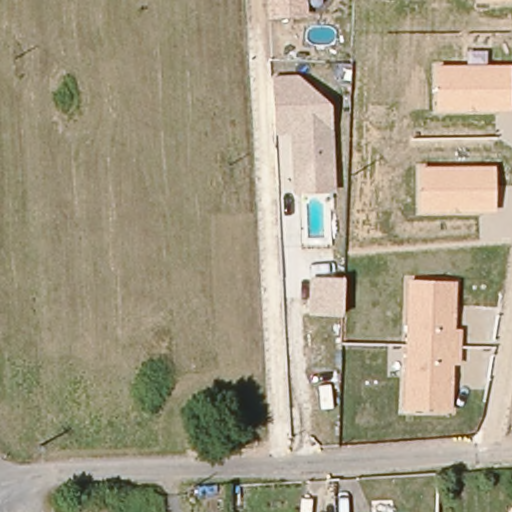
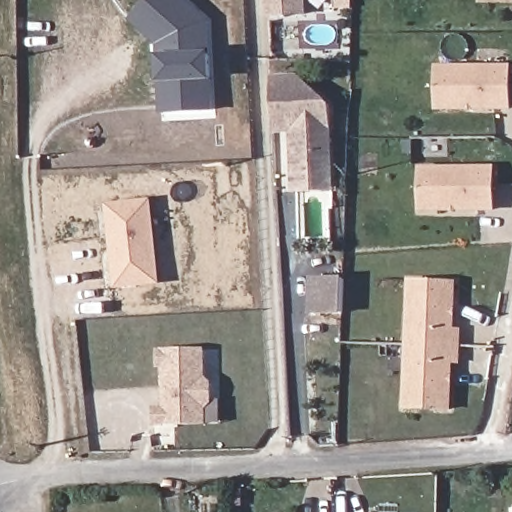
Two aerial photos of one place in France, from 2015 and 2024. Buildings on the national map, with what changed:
new [(165,47),(134,20),(152,0),(188,0),(212,20),(217,109),(167,111),(165,47)]
unchanged [(306,16),(267,19),(266,0),(304,0),(306,16)]
unchanged [(478,1),(478,0),(512,0),(512,1),(478,1)]
unchanged [(511,111),(432,112),(433,65),(467,65),(467,52),(486,53),(486,65),(511,66),(511,111)]
unchanged [(274,136),(270,77),(298,75),(328,103),(333,192),(292,195),(288,135),(274,136)]
unchanged [(495,212),(416,214),(416,168),(495,168),(495,212)]
new [(162,285),(116,290),(106,205),(153,199),(162,285)]
unchanged [(310,278),(342,278),(342,317),(308,314),(310,278)]
unchanged [(460,332),(457,361),(450,361),(447,409),(405,408),(409,283),(452,284),(451,332),(460,332)]
new [(207,377),(214,382),(214,400),(221,399),(222,423),(208,423),(209,426),(155,427),(154,407),(164,407),(163,369),(157,370),(157,350),(207,348),(208,359),(207,377)]

